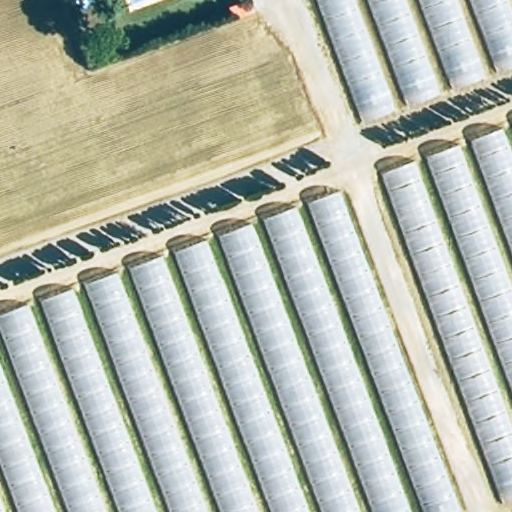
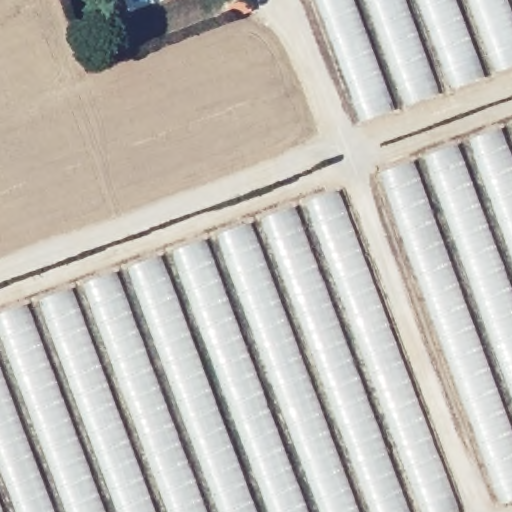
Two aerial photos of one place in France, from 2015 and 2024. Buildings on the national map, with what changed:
unchanged [(512,0),(512,70),(362,126),(316,0),(512,0)]
unchanged [(476,512),(0,512),(0,315),(512,126),(512,499),(476,512)]

